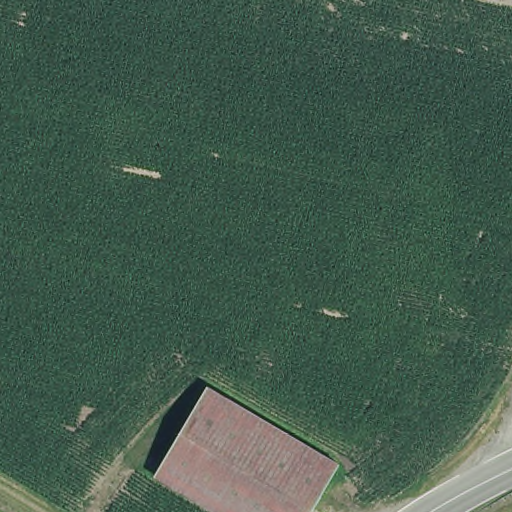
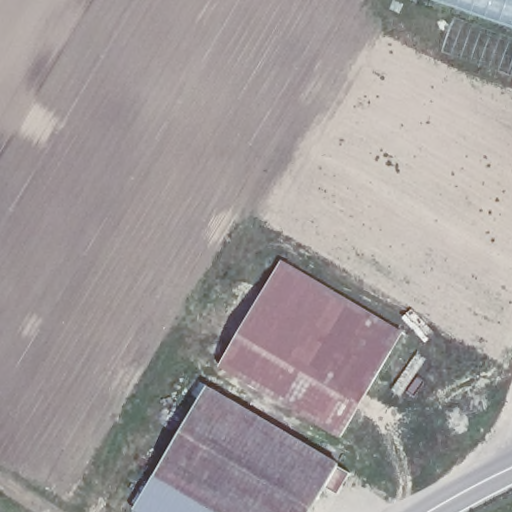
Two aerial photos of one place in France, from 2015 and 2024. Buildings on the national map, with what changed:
new [(432,0),(512,0),(512,29),(432,0)]
new [(280,258),(403,331),(339,438),(279,400),(218,364),(280,258)]
unchanged [(306,512),(211,512),(151,477),(202,391),(333,464),(306,512)]
new [(211,512),(132,512),(151,477),(211,512)]

